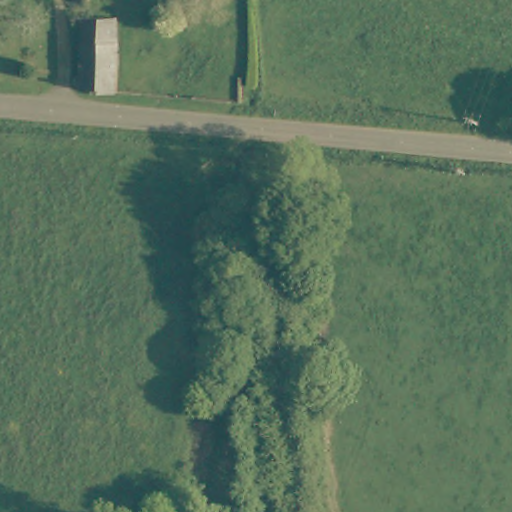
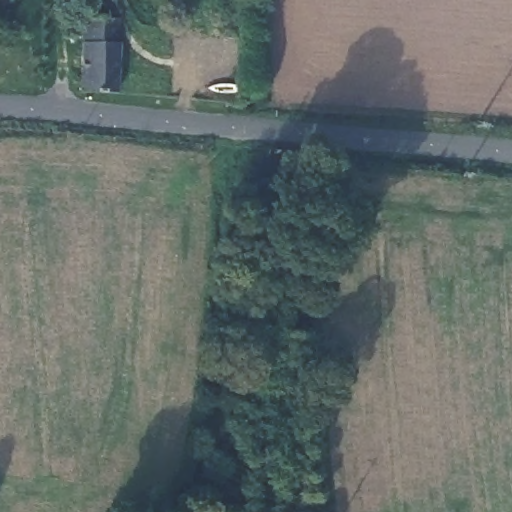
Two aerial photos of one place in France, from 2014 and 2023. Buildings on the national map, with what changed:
unchanged [(61,0),(79,0),(79,11),(62,14),(61,0)]
unchanged [(80,91),(80,41),(118,42),(118,94),(80,91)]

